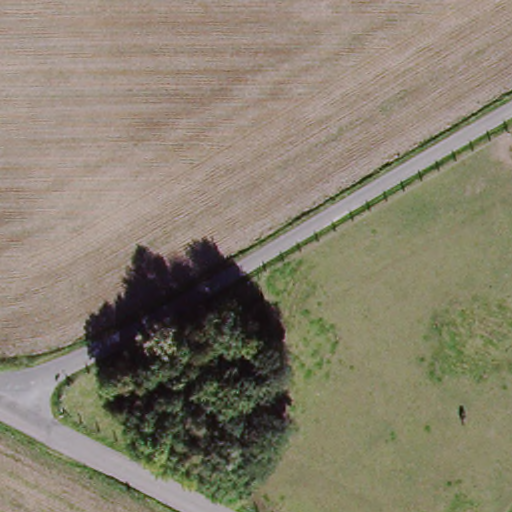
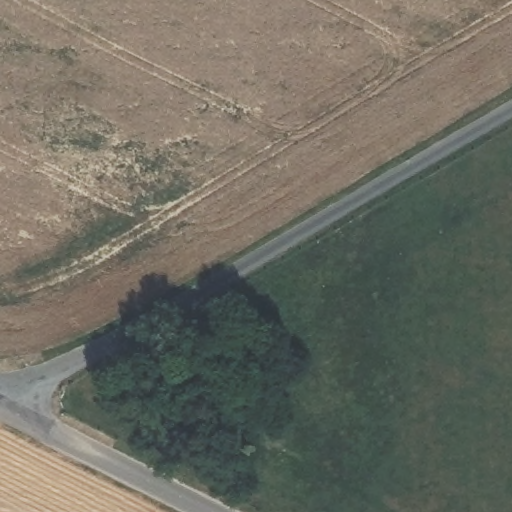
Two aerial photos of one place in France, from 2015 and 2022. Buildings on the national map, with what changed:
[]

